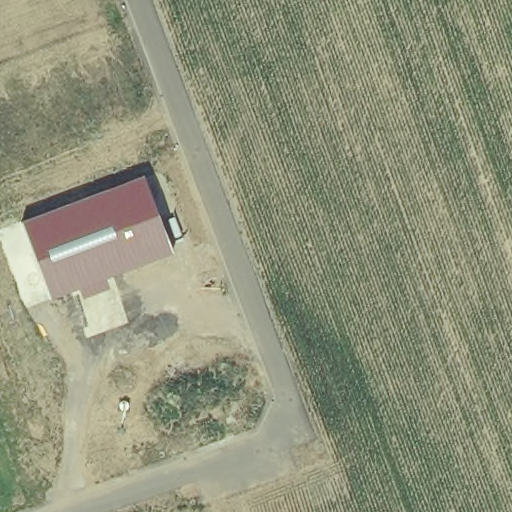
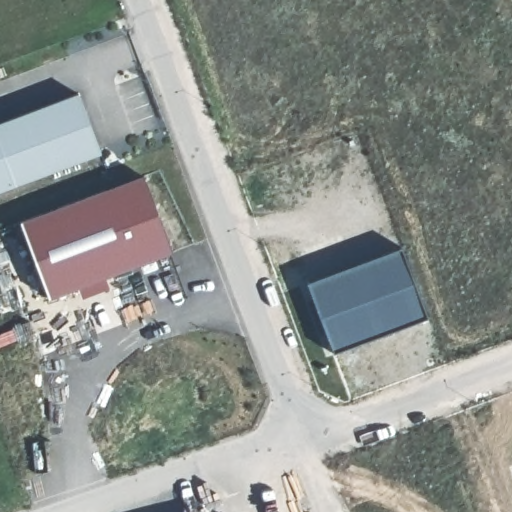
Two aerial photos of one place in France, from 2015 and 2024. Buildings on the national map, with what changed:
new [(0,149),(0,122),(78,92),(102,153),(14,187),(0,149)]
unchanged [(22,219),(144,176),(173,253),(107,278),(111,286),(82,297),(79,287),(52,297),(22,219)]
new [(400,247),(427,316),(332,351),(305,281),(400,247)]
new [(199,512),(198,512),(199,511),(199,512)]

